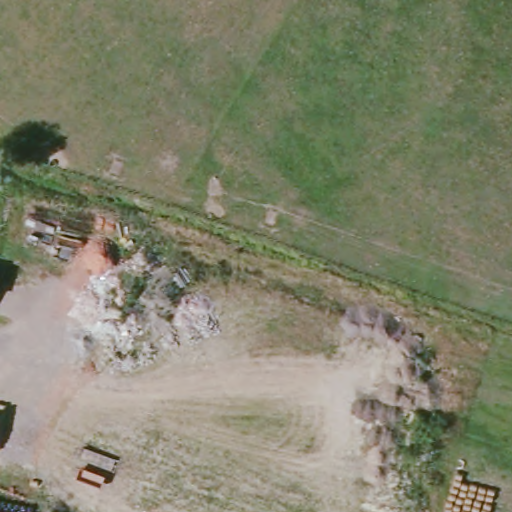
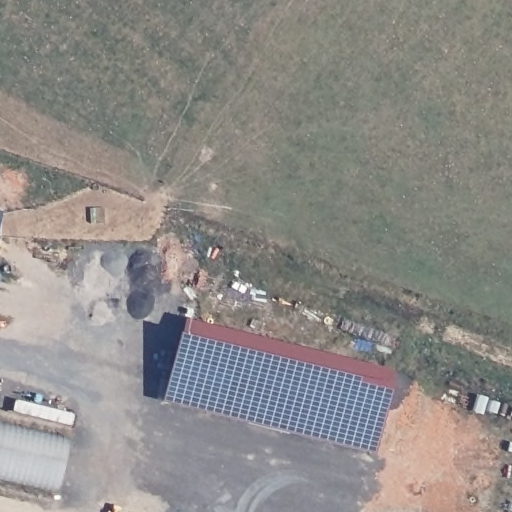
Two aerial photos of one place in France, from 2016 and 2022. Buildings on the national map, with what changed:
new [(185,319),(392,371),(371,452),(165,400),(185,319)]
new [(55,492),(0,480),(0,420),(67,435),(55,492)]

